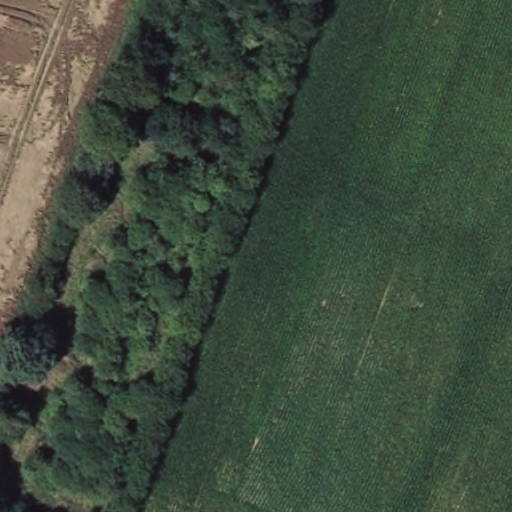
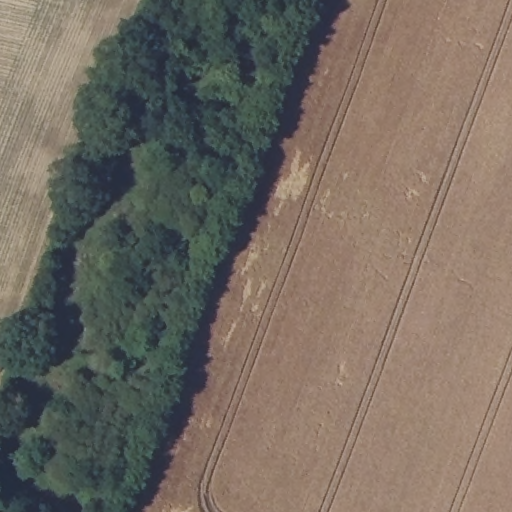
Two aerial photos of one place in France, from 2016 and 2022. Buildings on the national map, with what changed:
unchanged [(115,89),(130,95),(124,112),(107,106),(115,89)]

